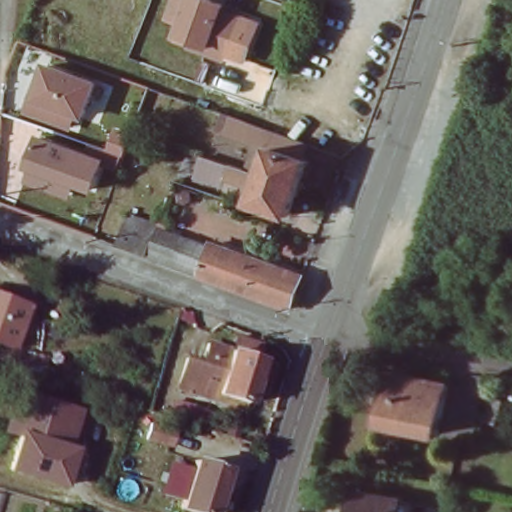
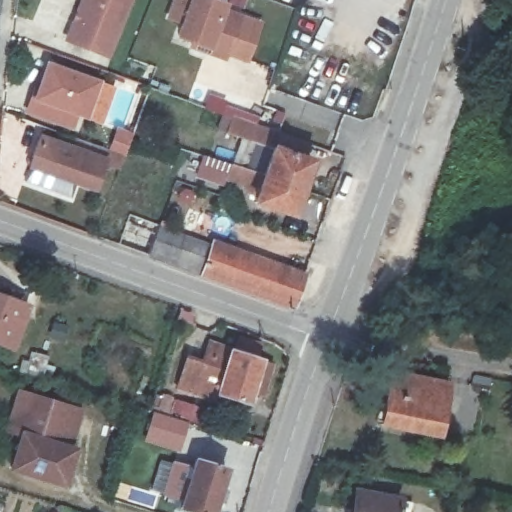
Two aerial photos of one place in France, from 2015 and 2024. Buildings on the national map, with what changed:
new [(82,0),(129,0),(107,54),(67,38),(82,0)]
unchanged [(229,3),(227,8),(242,14),(227,59),(192,47),(194,41),(178,35),(182,22),(165,17),(172,0),(219,0),(229,3)]
unchanged [(100,80),(87,116),(77,113),(71,128),(26,112),(32,99),(47,61),(100,80)]
unchanged [(309,142),(307,157),(314,160),(294,217),(254,203),(257,192),(225,180),(230,163),(246,169),(257,140),(217,130),(224,113),(309,142)]
unchanged [(108,156),(95,190),(77,183),(71,195),(26,180),(33,169),(27,166),(40,133),(108,156)]
unchanged [(146,253),(117,242),(130,206),(159,217),(151,239),(146,253)]
unchanged [(165,244),(168,236),(213,253),(216,243),(305,275),(294,307),(146,253),(151,239),(165,244)]
unchanged [(378,305),(383,287),(397,292),(392,310),(378,305)]
unchanged [(11,339),(0,335),(0,291),(24,300),(11,339)]
unchanged [(262,395),(250,391),(248,398),(219,389),(216,396),(177,383),(187,354),(202,358),(209,339),(233,346),(237,335),(261,342),(257,354),(260,355),(259,359),(272,363),(262,395)]
unchanged [(15,364),(18,354),(30,358),(33,347),(44,351),(48,352),(41,372),(37,371),(15,364)]
unchanged [(433,439),(374,427),(383,375),(441,387),(433,439)]
unchanged [(465,401),(469,379),(487,383),(483,405),(465,401)]
unchanged [(87,414),(74,451),(80,453),(69,488),(16,471),(28,436),(14,431),(26,394),(45,400),(81,412),(87,414)]
unchanged [(512,403),(512,432),(505,430),(512,403)]
unchanged [(141,432),(147,415),(174,425),(169,441),(141,432)]
unchanged [(201,512),(185,507),(199,461),(227,471),(216,512),(201,512)]
unchanged [(354,512),(358,489),(399,497),(396,512),(354,512)]
unchanged [(5,495),(0,512),(0,494),(5,495)]

